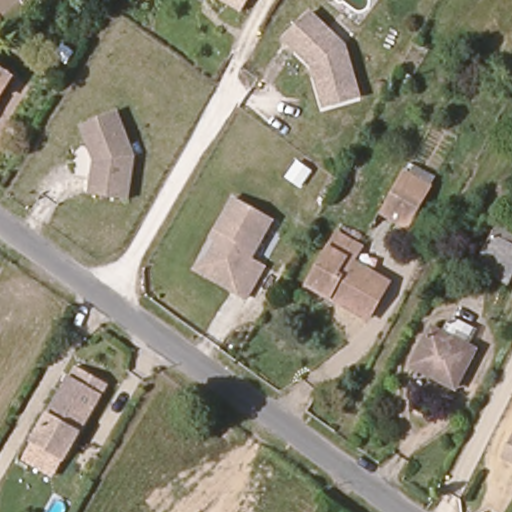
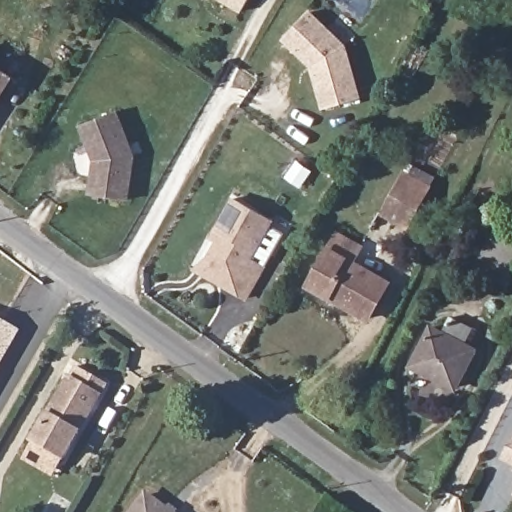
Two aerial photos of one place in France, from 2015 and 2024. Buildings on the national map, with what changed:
unchanged [(229,0),(246,0),(242,7),(229,0)]
unchanged [(317,104),(306,61),(279,36),(305,9),(323,25),(333,14),(351,30),(339,41),(355,94),(317,104)]
unchanged [(0,61),(19,72),(0,103),(0,61)]
unchanged [(115,108),(134,154),(128,197),(90,192),(94,158),(80,122),(115,108)]
unchanged [(388,211),(403,186),(411,170),(435,183),(428,197),(413,224),(388,211)]
unchanged [(209,254),(218,239),(212,235),(215,228),(233,197),(273,219),(250,257),(264,265),(246,296),(232,288),(194,267),(209,254)]
unchanged [(512,238),(512,277),(484,263),(500,231),(512,238)]
unchanged [(361,247),(354,261),(391,282),(372,316),(312,285),(339,234),(361,247)]
new [(0,352),(0,325),(12,331),(0,352)]
unchanged [(477,347),(459,382),(419,363),(437,327),(477,347)]
unchanged [(75,384),(82,371),(99,380),(91,394),(99,398),(64,461),(31,442),(66,381),(75,384)]
unchanged [(504,454),(512,438),(512,458),(504,454)]
new [(145,490),(175,512),(129,512),(145,490)]

